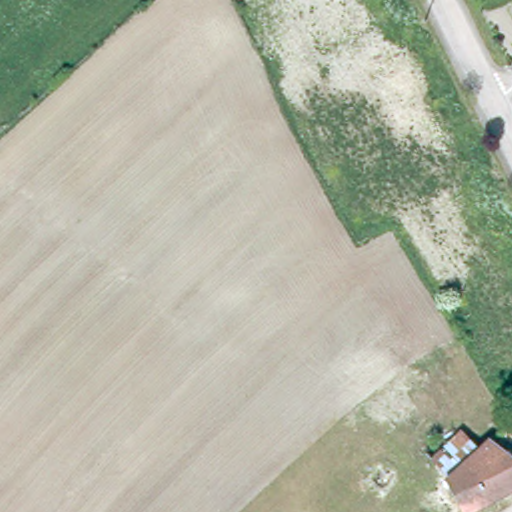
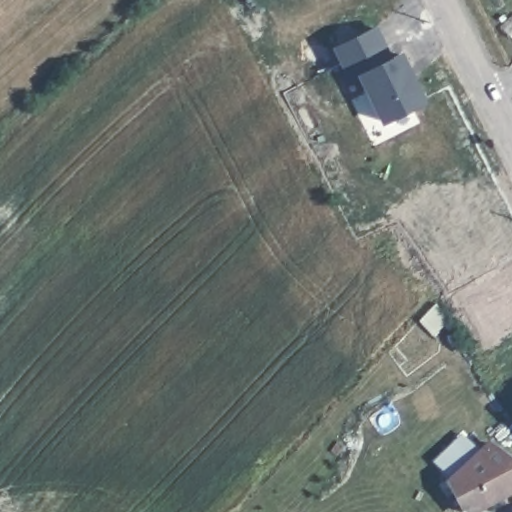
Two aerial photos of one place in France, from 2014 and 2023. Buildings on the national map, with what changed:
new [(392,55),(401,51),(425,102),(380,124),(357,77),(350,81),(332,46),(376,23),(392,55)]
unchanged [(445,476),(426,447),(452,421),(478,446),(445,476)]
unchanged [(512,451),(512,485),(467,508),(445,476),(478,446),(487,438),(512,451)]

